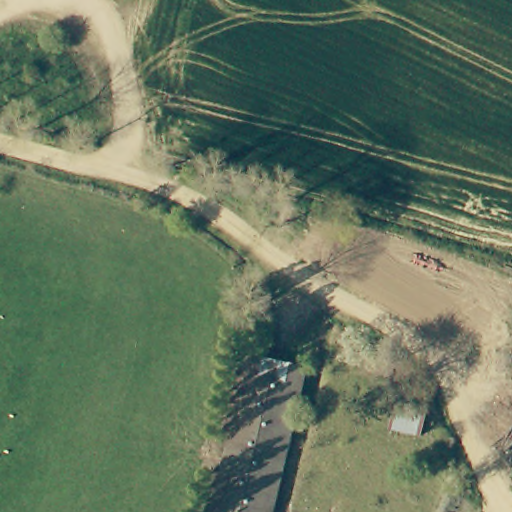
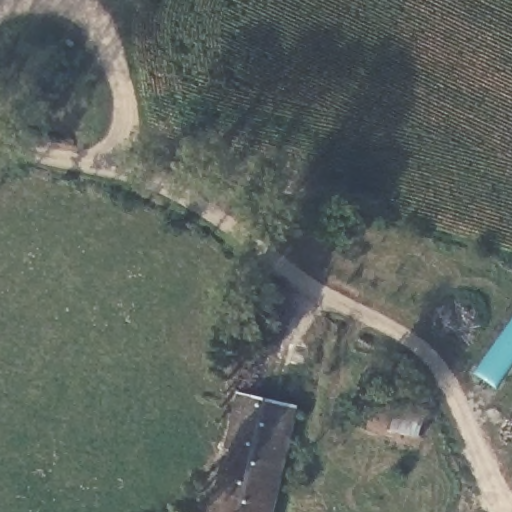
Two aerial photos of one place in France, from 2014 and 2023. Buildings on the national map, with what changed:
unchanged [(244,398),(300,411),(274,512),(214,512),(244,398)]

